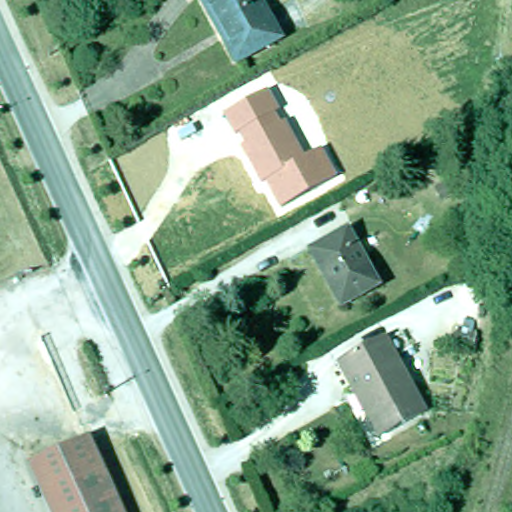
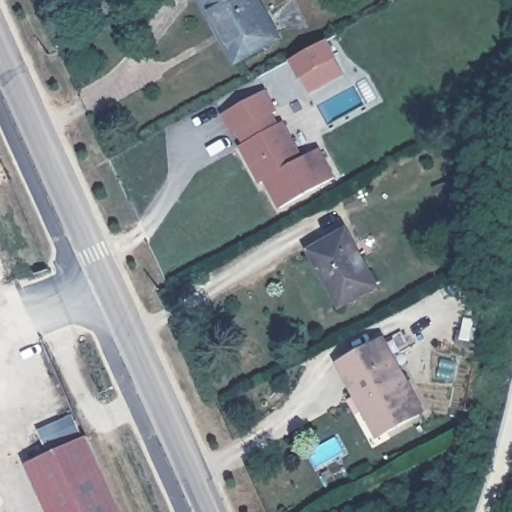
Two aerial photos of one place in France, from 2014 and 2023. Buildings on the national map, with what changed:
unchanged [(278,33),(235,57),(203,0),(259,0),(278,33)]
new [(336,58),(344,75),(309,94),(301,77),(300,78),(290,60),(329,40),(338,57),(336,58)]
unchanged [(281,113),(274,117),(280,126),(286,124),(305,157),(321,150),(336,178),(278,208),(263,183),(260,184),(241,149),(245,145),(241,137),(235,140),(223,117),(268,93),(281,113)]
unchanged [(374,280),(337,302),(306,245),(343,224),(374,280)]
unchanged [(415,402),(377,423),(357,385),(362,383),(358,375),(343,382),(328,356),(374,331),(415,402)]
unchanged [(81,428),(119,512),(50,512),(24,455),(81,428)]

